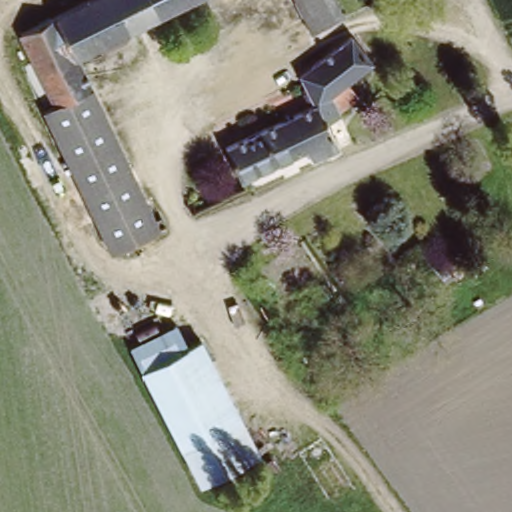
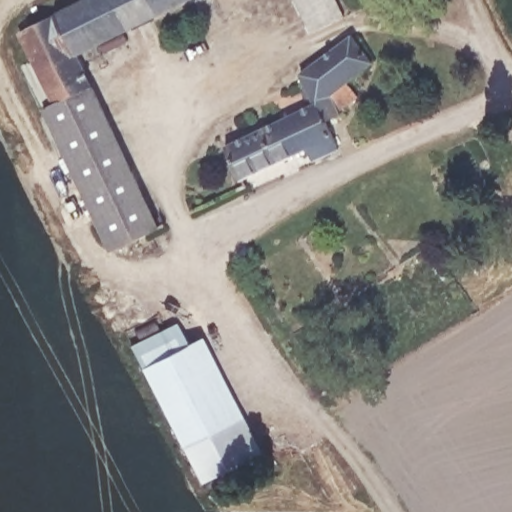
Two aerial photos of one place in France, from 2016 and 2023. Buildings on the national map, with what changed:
unchanged [(44,108),(53,105),(17,30),(74,0),(192,0),(78,58),(160,229),(110,252),(44,108)]
unchanged [(344,16),(311,31),(295,0),(336,0),(344,16)]
unchanged [(324,93),(313,70),(368,27),(384,53),(348,82),(358,104),(341,116),(351,137),(320,150),(313,136),(257,163),(266,181),(212,205),(202,184),(232,170),(219,143),(324,93)]
unchanged [(166,329),(183,357),(197,349),(249,459),(200,487),(132,352),(166,329)]

